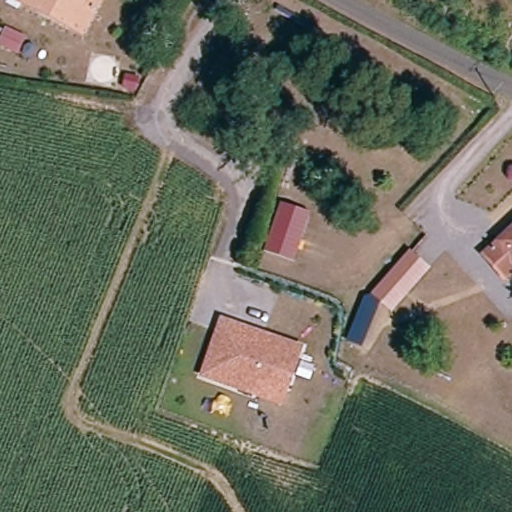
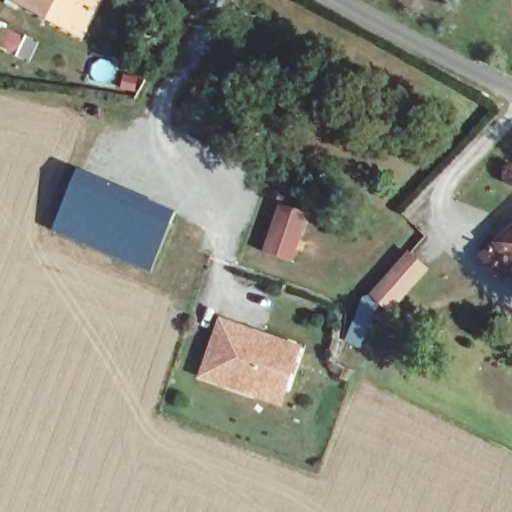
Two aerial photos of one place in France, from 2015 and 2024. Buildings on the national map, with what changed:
unchanged [(10,0),(99,0),(80,36),(10,0)]
new [(54,231),(80,169),(178,212),(151,272),(54,231)]
unchanged [(265,251),(289,180),(318,190),(294,260),(265,251)]
unchanged [(512,270),(502,278),(483,257),(512,231),(512,270)]
unchanged [(424,270),(389,311),(372,296),(407,256),(424,270)]
unchanged [(248,398),(198,380),(217,325),(295,352),(278,401),(276,407),(248,398)]

